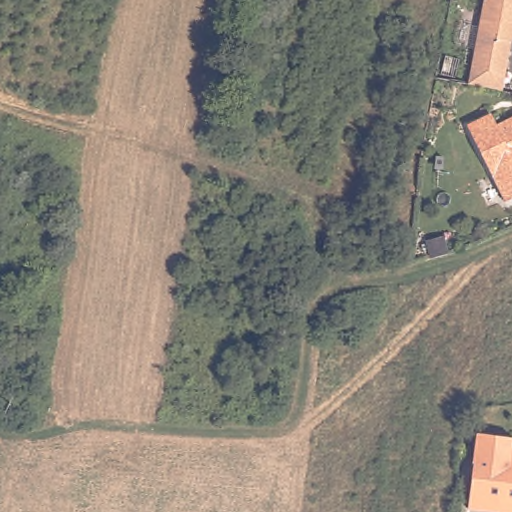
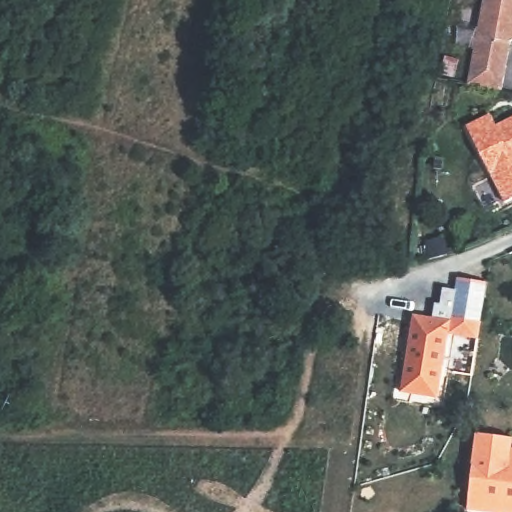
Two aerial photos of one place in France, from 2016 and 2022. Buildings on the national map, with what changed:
unchanged [(503,94),(469,87),(483,2),(486,0),(512,0),(512,45),(503,94)]
unchanged [(468,135),(491,124),(496,135),(512,126),(512,166),(511,164),(502,169),(509,181),(496,187),(468,135)]
new [(478,339),(449,334),(439,397),(401,393),(413,313),(433,317),(436,302),(440,302),(443,287),(456,288),(458,277),(486,282),(478,339)]
unchanged [(476,510),(468,509),(479,434),(486,435),(512,439),(512,512),(489,512),(476,510)]

